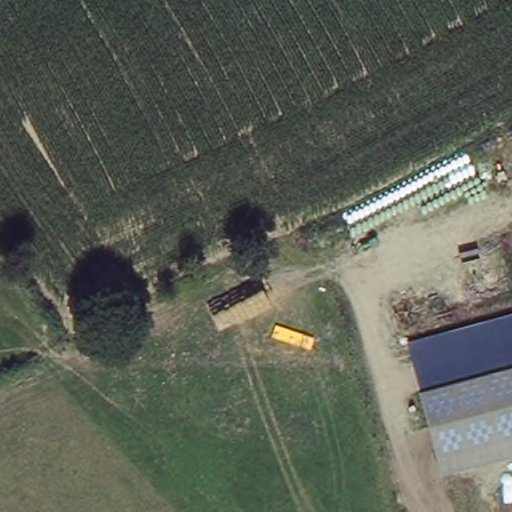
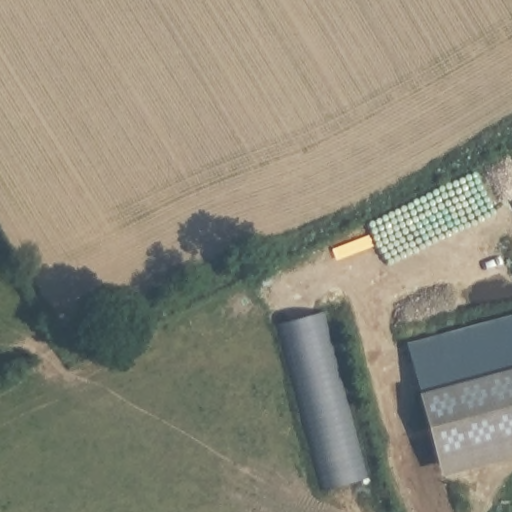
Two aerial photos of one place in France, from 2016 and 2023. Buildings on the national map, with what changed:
new [(324,315),(368,483),(321,496),(277,329),(324,315)]
unchanged [(421,396),(407,343),(512,316),(512,455),(441,474),(421,396)]

